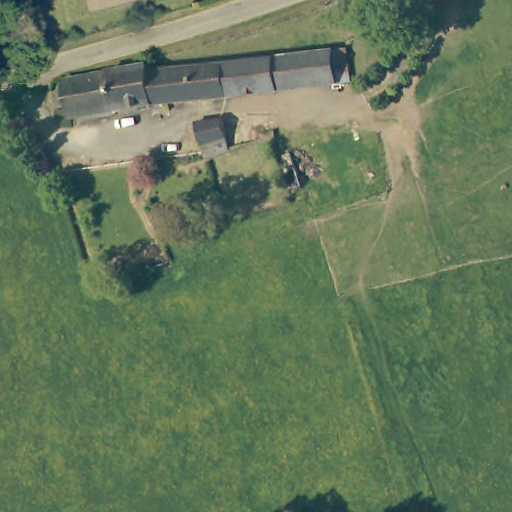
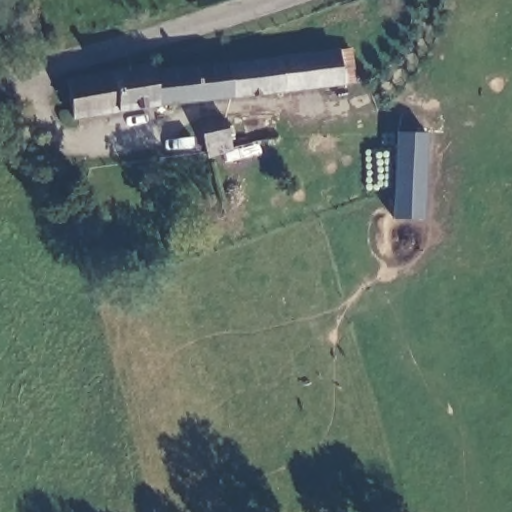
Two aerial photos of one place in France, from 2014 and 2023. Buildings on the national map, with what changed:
unchanged [(280,92),(278,55),(297,54),(332,53),(355,53),(356,88),(334,90),(287,92),(280,92)]
unchanged [(280,92),(171,98),(77,121),(66,81),(159,60),(160,65),(278,55),(280,92)]
unchanged [(230,155),(198,160),(195,125),(227,122),(230,155)]
new [(399,130),(428,130),(428,218),(397,218),(399,130)]

